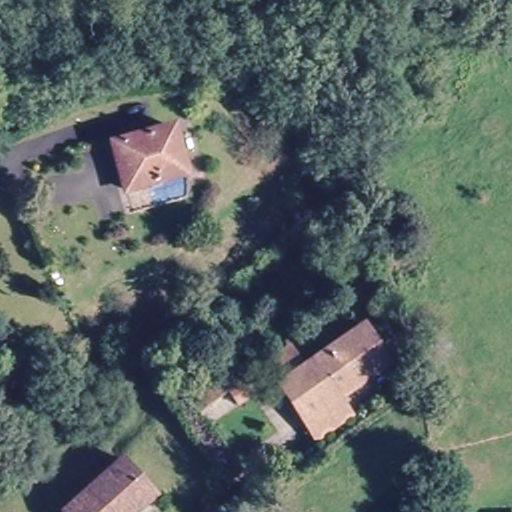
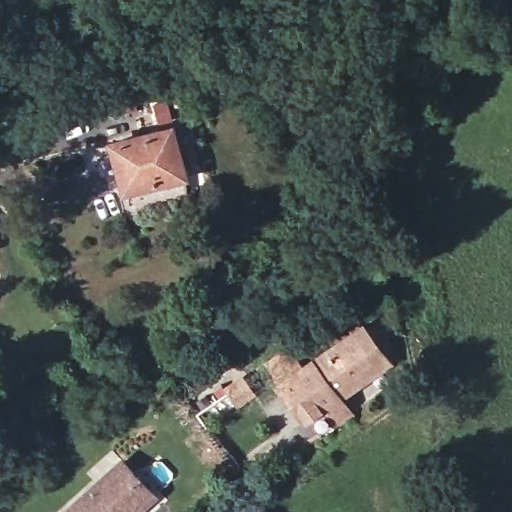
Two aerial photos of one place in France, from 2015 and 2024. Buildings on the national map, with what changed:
unchanged [(171,126),(185,176),(121,192),(107,143),(171,126)]
unchanged [(315,434),(302,416),(275,377),(260,355),(282,340),(298,362),(358,322),(384,360),(331,396),(345,414),(315,434)]
unchanged [(152,494),(132,512),(61,512),(60,511),(121,459),(152,494)]

